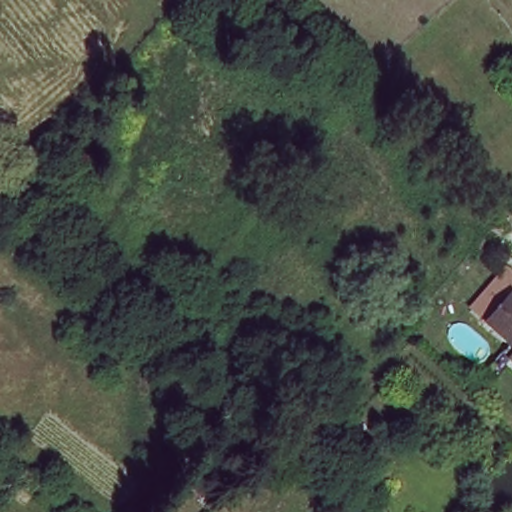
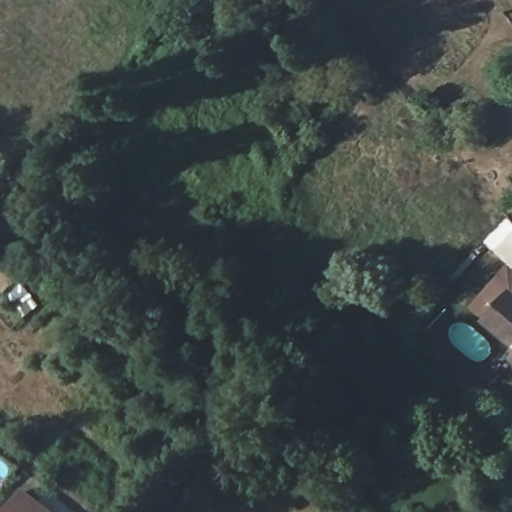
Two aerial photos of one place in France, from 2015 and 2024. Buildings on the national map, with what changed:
unchanged [(494,333),(482,322),(512,287),(512,349),(494,333)]
new [(23,487),(55,512),(3,512),(23,487)]

